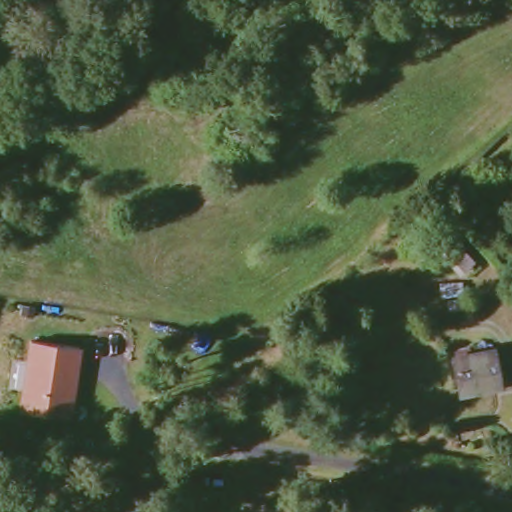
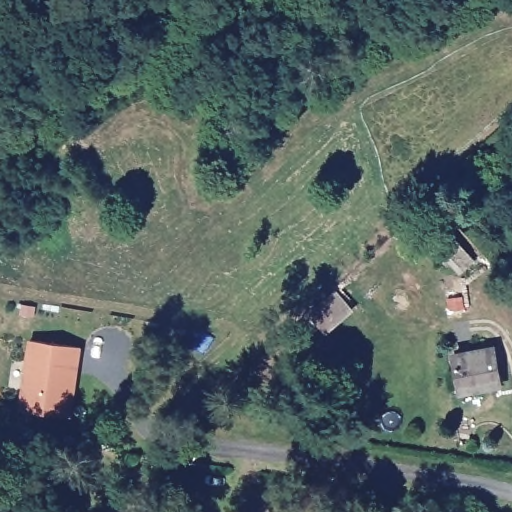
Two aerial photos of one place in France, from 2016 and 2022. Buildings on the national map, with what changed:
unchanged [(482,268),(470,279),(441,249),(452,239),(482,268)]
unchanged [(472,314),(455,316),(453,294),(469,293),(472,314)]
unchanged [(72,417),(22,410),(32,338),(82,345),(79,367),(75,394),(72,417)]
unchanged [(495,385),(455,392),(450,361),(490,354),(495,385)]

